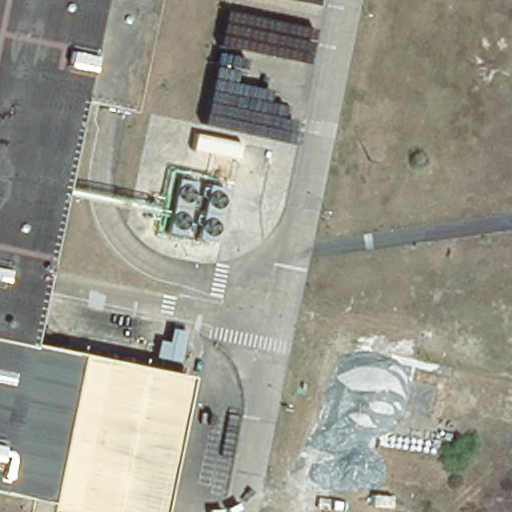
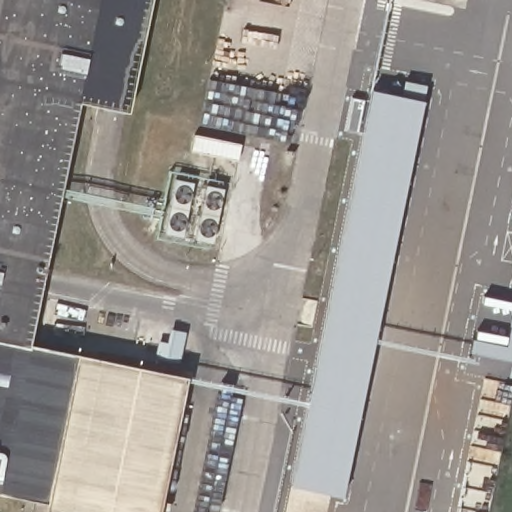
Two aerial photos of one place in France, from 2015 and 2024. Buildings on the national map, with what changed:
unchanged [(124,112),(76,101),(25,344),(168,372),(141,512),(39,512),(0,504),(0,0),(147,0),(124,112)]
new [(431,103),(351,497),(299,486),(378,91),(431,103)]
new [(478,342),(511,347),(512,342),(512,360),(476,354),(478,342)]
demolished [(457,427),(451,451),(353,434),(360,408),(457,427)]

